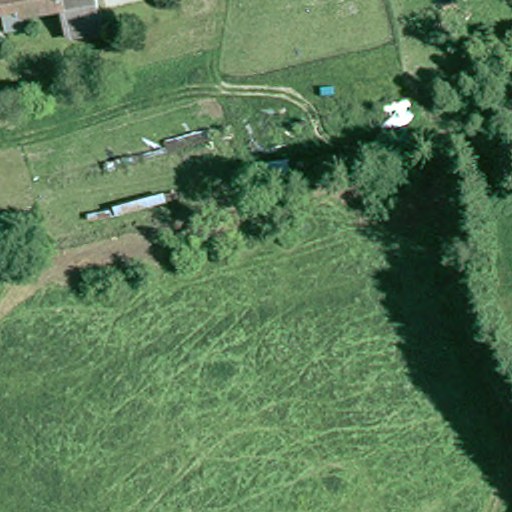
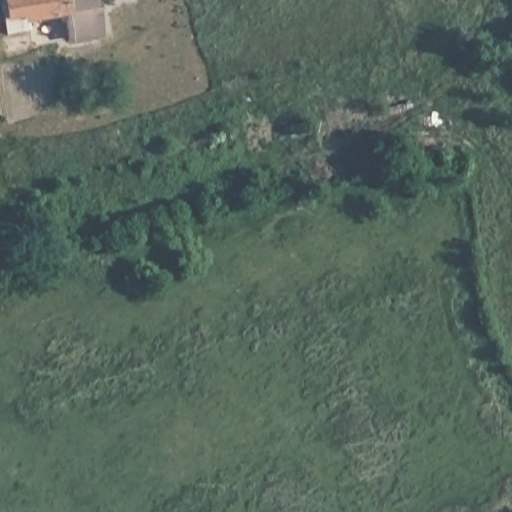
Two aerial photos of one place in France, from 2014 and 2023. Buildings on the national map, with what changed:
unchanged [(66,15),(27,24),(27,35),(5,38),(0,0),(96,0),(98,39),(70,45),(70,32),(66,15)]

